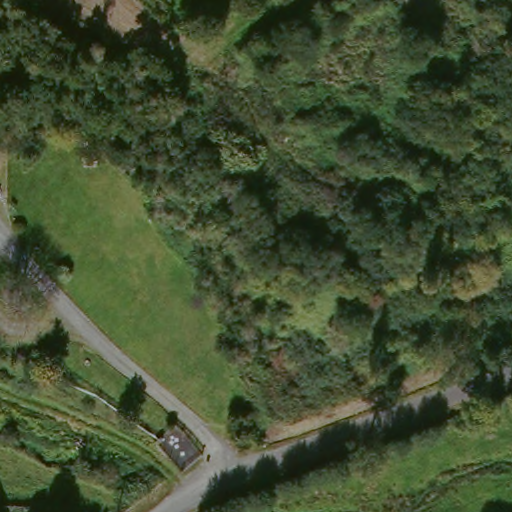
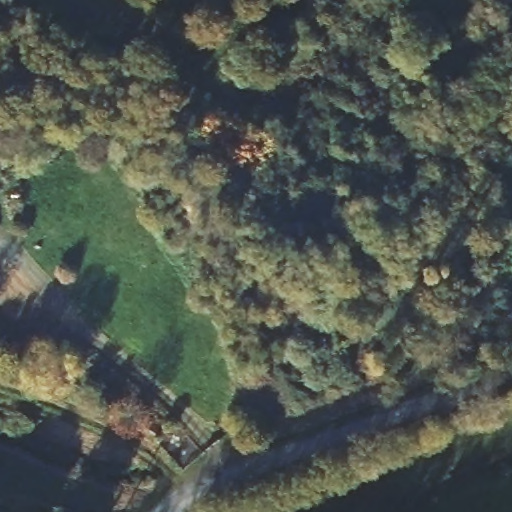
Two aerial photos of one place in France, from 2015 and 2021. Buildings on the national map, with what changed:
[]

